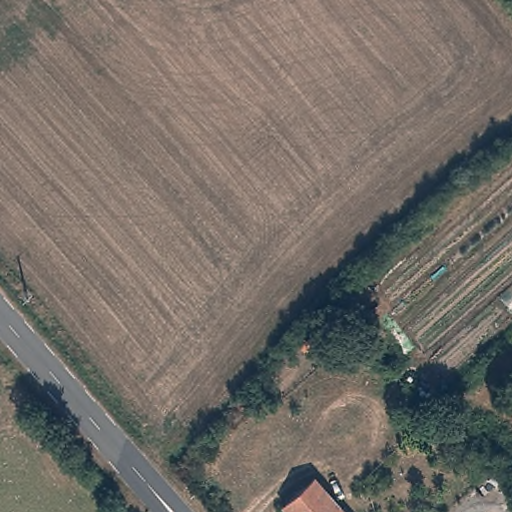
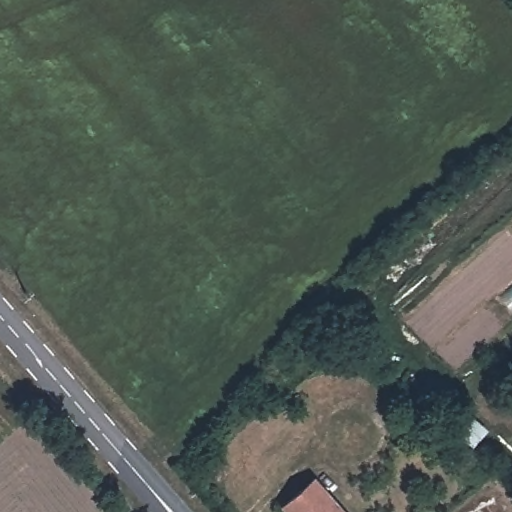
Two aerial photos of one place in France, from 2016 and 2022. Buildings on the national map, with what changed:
unchanged [(342,512),(289,512),(286,509),(318,483),(342,512)]

